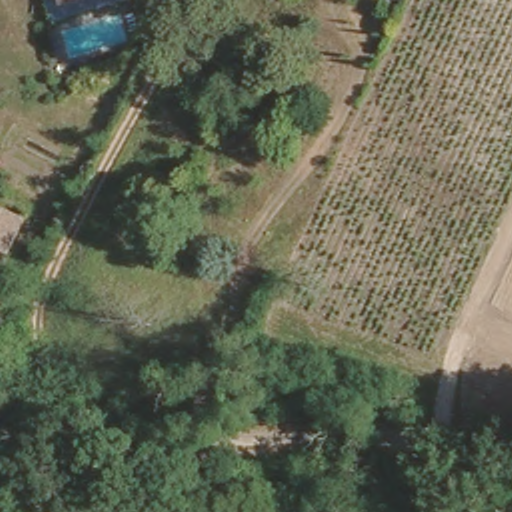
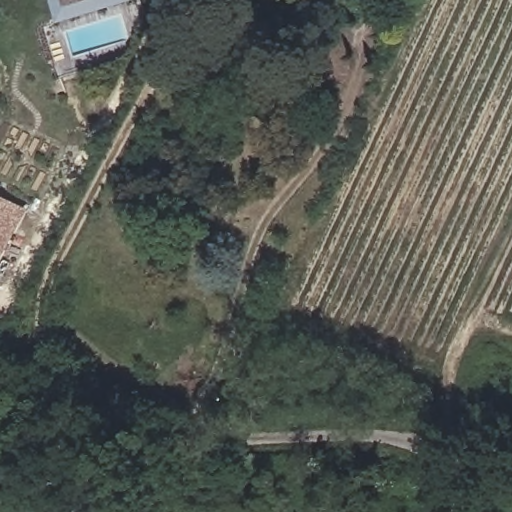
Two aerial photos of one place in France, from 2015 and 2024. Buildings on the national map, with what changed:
unchanged [(59,17),(54,0),(116,0),(59,17)]
new [(0,193),(30,209),(0,264),(0,193)]
demolished [(14,254),(0,248),(0,202),(32,218),(14,254)]

